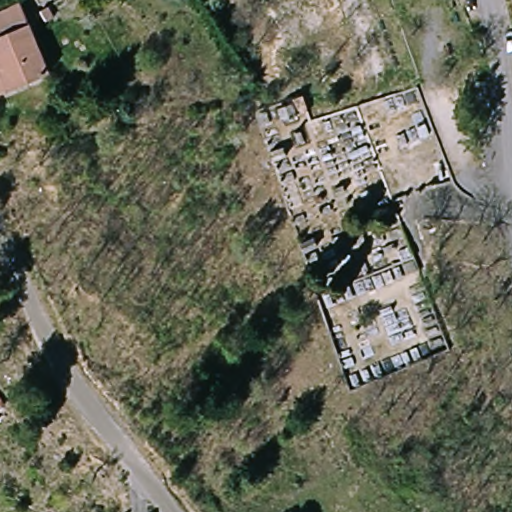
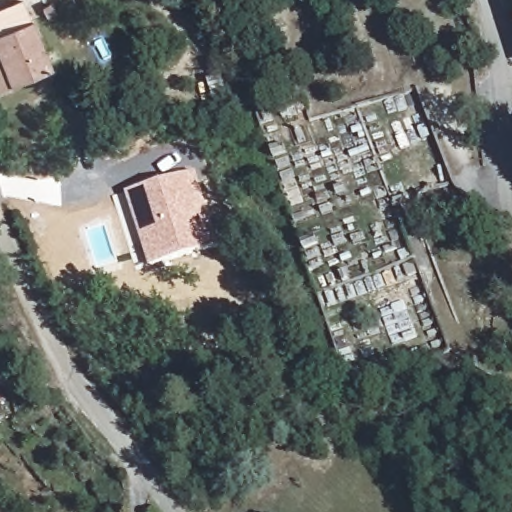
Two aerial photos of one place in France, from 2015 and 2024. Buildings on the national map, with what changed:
unchanged [(0,60),(3,59),(0,52),(0,34),(0,11),(24,0),(57,70),(17,88),(4,95),(0,86),(0,60)]
new [(218,248),(149,267),(126,193),(195,171),(218,248)]

